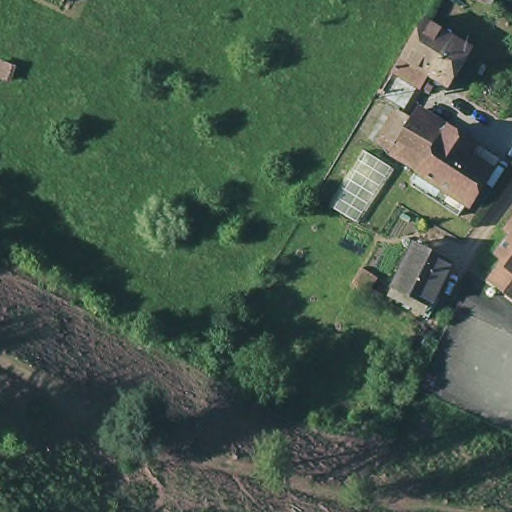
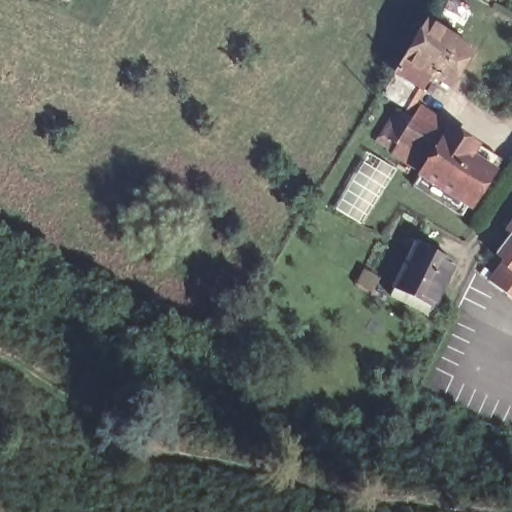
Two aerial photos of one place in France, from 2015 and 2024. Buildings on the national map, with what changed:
unchanged [(66,4),(58,0),(68,0),(66,4)]
unchanged [(388,85),(399,65),(408,51),(432,12),(454,25),(457,21),(468,27),(464,32),(479,41),(473,54),(456,80),(439,70),(418,104),(388,85)]
unchanged [(13,84),(0,79),(0,70),(3,62),(19,69),(13,84)]
unchanged [(498,164),(474,200),(471,196),(464,207),(420,179),(429,165),(427,164),(397,144),(398,140),(384,132),(404,102),(418,110),(423,114),(429,105),(456,120),(495,146),(505,153),(498,164)]
unchanged [(511,226),(512,225),(512,227),(511,226)]
unchanged [(427,306),(390,288),(394,280),(391,278),(414,233),(453,252),(455,254),(433,299),(429,307),(427,306)]
unchanged [(494,277),(509,257),(499,250),(512,234),(512,292),(494,277)]
unchanged [(380,279),(372,294),(356,285),(364,270),(380,279)]

